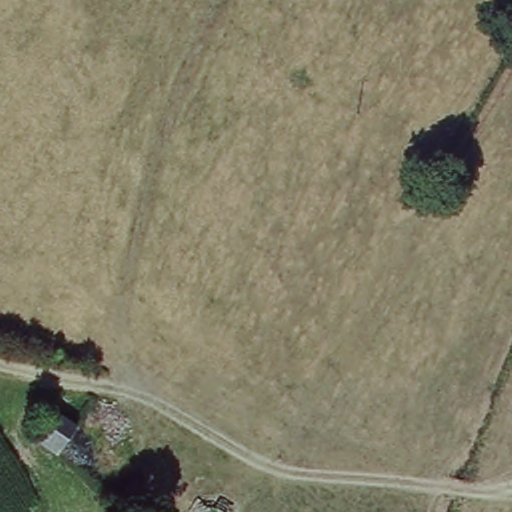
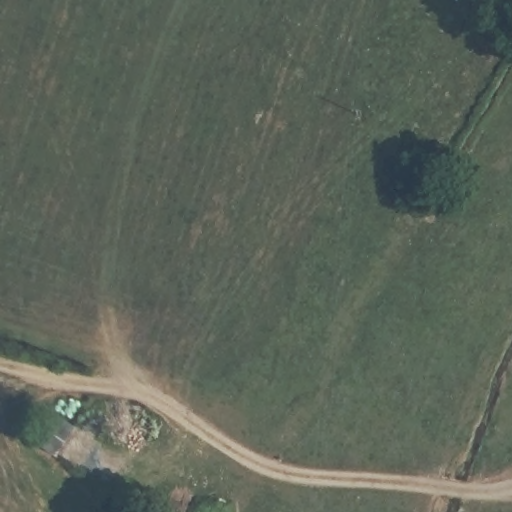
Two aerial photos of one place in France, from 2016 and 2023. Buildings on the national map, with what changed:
unchanged [(29,441),(47,412),(75,429),(57,459),(29,441)]

